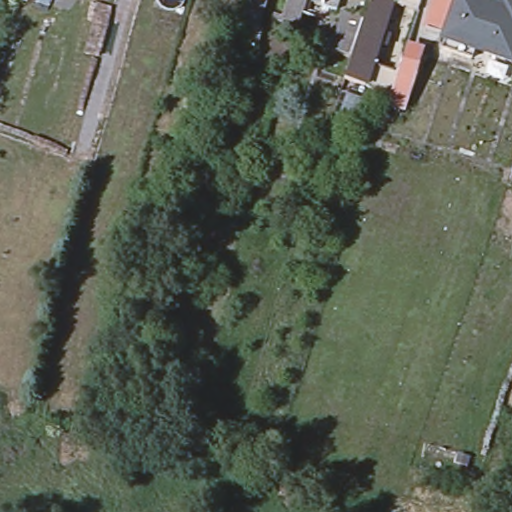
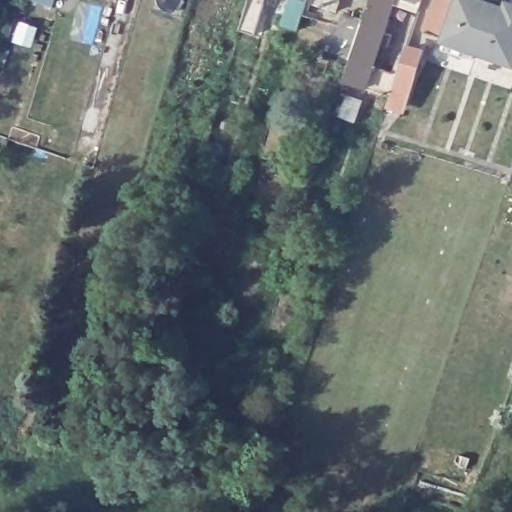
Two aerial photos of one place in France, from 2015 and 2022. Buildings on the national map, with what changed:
unchanged [(308,0),(300,28),(283,22),(290,0),(308,0)]
unchanged [(311,0),(339,0),(337,8),(311,0)]
unchanged [(387,107),(392,93),(372,86),(346,78),(353,56),(332,49),(339,31),(332,28),(335,21),(342,23),(345,11),(365,18),(371,0),(395,0),(374,62),(380,64),(399,71),(407,45),(424,51),(403,113),(387,107)]
unchanged [(397,0),(404,0),(404,2),(397,0)]
unchanged [(510,7),(494,58),(460,47),(446,42),(447,40),(428,33),(439,0),(455,0),(460,2),(461,0),(470,0),(475,2),(504,12),(505,6),(510,7)]
unchanged [(512,64),(494,58),(510,7),(512,8),(512,64)]

